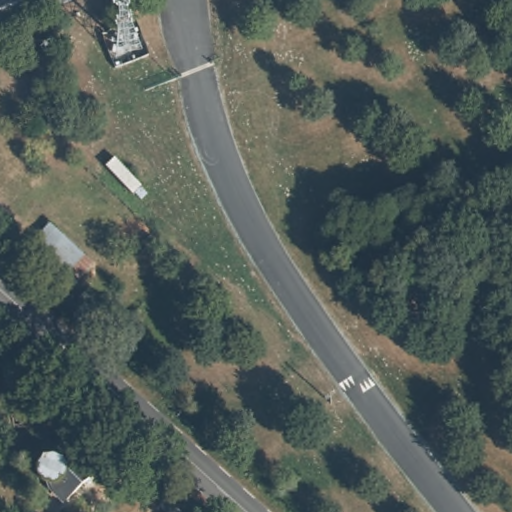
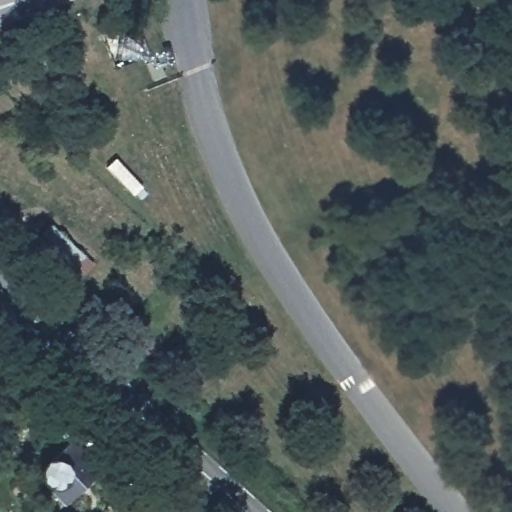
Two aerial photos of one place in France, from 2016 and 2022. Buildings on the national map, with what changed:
unchanged [(47,253),(32,241),(50,223),(95,264),(65,296),(35,267),(47,253)]
unchanged [(42,485),(39,481),(38,477),(38,472),(39,468),(40,465),(39,463),(60,446),(89,480),(63,504),(56,489),(54,490),(49,490),(46,488),(45,486),(42,485)]

